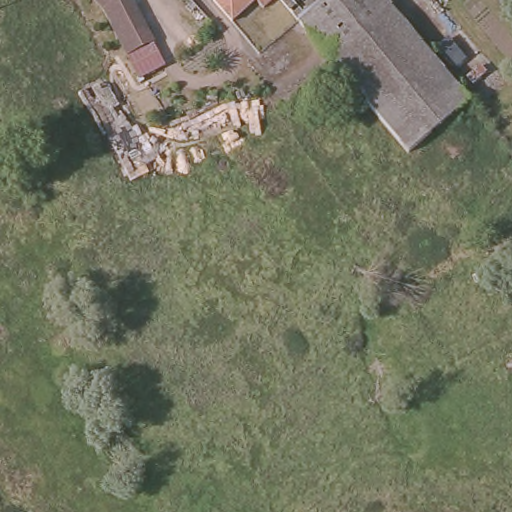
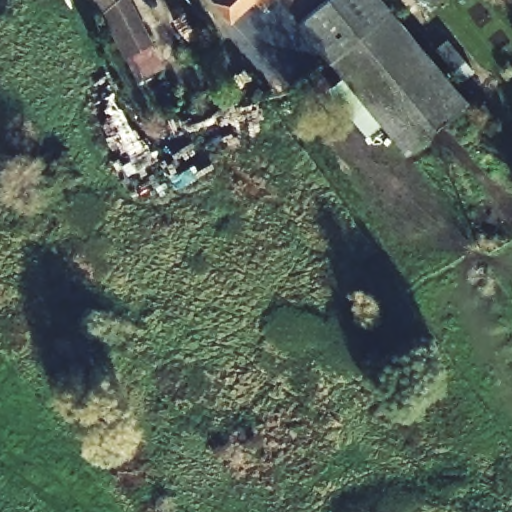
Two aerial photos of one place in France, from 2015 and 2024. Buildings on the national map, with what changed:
unchanged [(158,69),(135,84),(87,0),(117,0),(125,9),(158,69)]
unchanged [(217,0),(273,0),(277,5),(262,17),(254,8),(232,27),(212,4),(217,0)]
unchanged [(273,0),(328,0),(296,27),(277,5),(273,0)]
unchanged [(328,0),(376,0),(467,109),(408,159),(325,59),(296,27),(328,0)]

